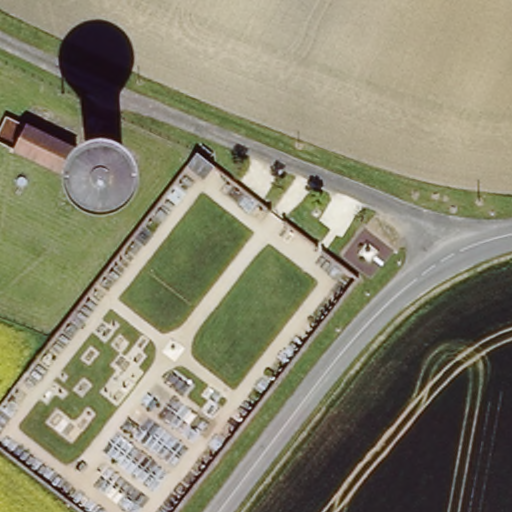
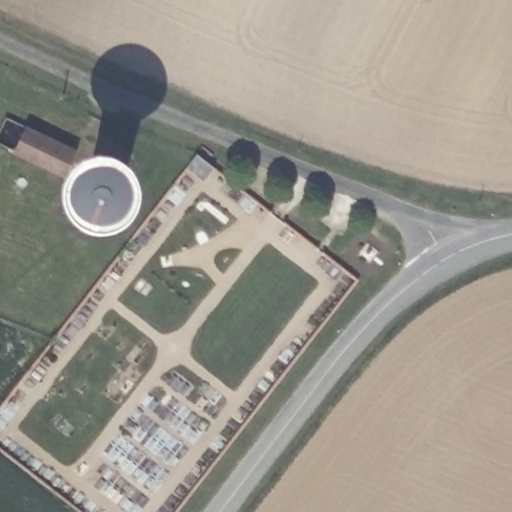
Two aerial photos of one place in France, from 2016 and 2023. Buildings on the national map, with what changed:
unchanged [(78,146),(67,171),(14,146),(26,121),(78,146)]
unchanged [(196,154),(218,163),(216,166),(205,181),(185,168),(196,154)]

